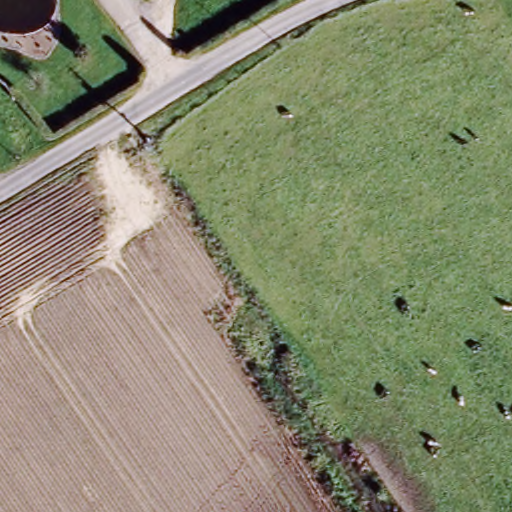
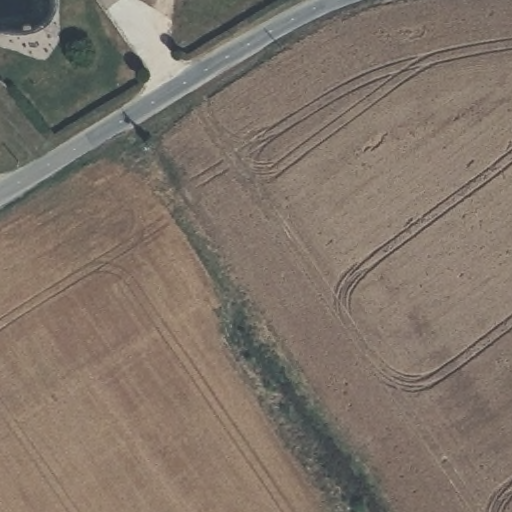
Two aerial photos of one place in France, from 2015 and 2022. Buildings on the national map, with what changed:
[]

